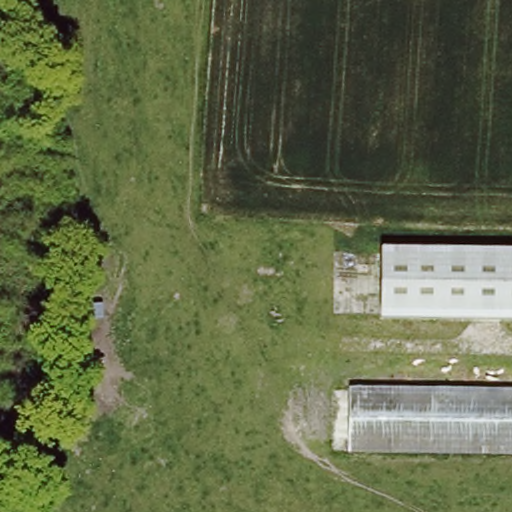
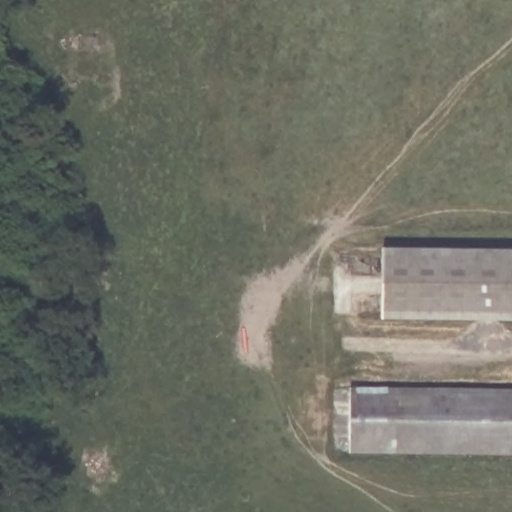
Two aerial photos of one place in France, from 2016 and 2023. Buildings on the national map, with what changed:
unchanged [(384,308),(382,245),(512,248),(512,310),(384,308)]
unchanged [(352,454),(353,390),(512,391),(512,456),(352,454)]

